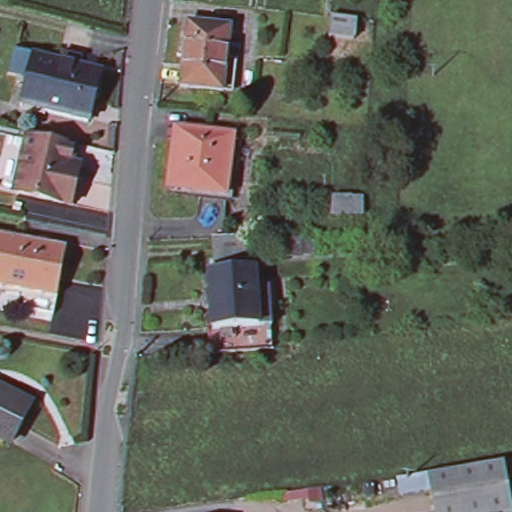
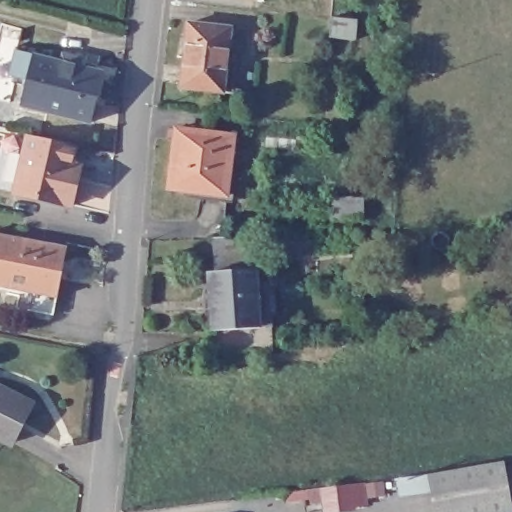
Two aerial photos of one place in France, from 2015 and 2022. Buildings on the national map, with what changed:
unchanged [(332,16),(357,19),(355,37),(331,34),(332,16)]
unchanged [(235,93),(225,92),(183,87),(190,22),(232,27),(228,59),(240,60),(235,93)]
unchanged [(90,127),(22,111),(30,79),(12,74),(17,56),(35,61),(102,77),(90,127)]
unchanged [(230,196),(171,190),(173,164),(177,130),(186,130),(237,136),(230,196)]
unchanged [(74,205),(69,204),(17,192),(30,137),(75,147),(72,164),(83,166),(74,205)]
unchanged [(335,192),(364,195),(362,215),(333,212),(335,192)]
unchanged [(215,229),(247,228),(250,262),(218,265),(215,229)]
unchanged [(57,296),(0,284),(0,236),(67,250),(57,296)]
unchanged [(285,239),(302,238),(303,255),(285,256),(285,239)]
unchanged [(218,336),(217,322),(212,265),(218,265),(250,262),(258,261),(260,280),(272,278),(275,317),(277,332),(277,340),(219,345),(218,336)]
unchanged [(3,441),(0,439),(0,388),(25,401),(3,441)]
unchanged [(507,458),(512,491),(512,512),(435,512),(428,471),(507,458)]

